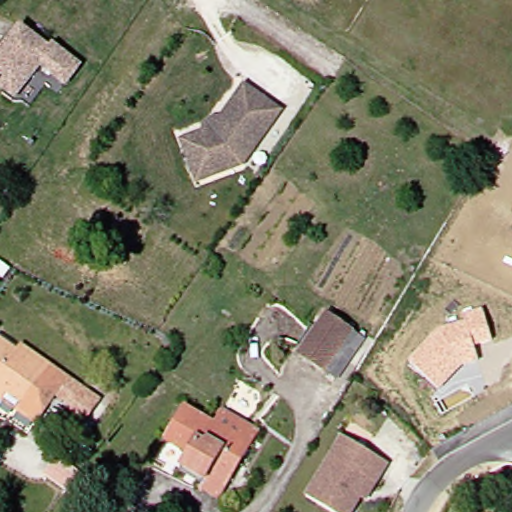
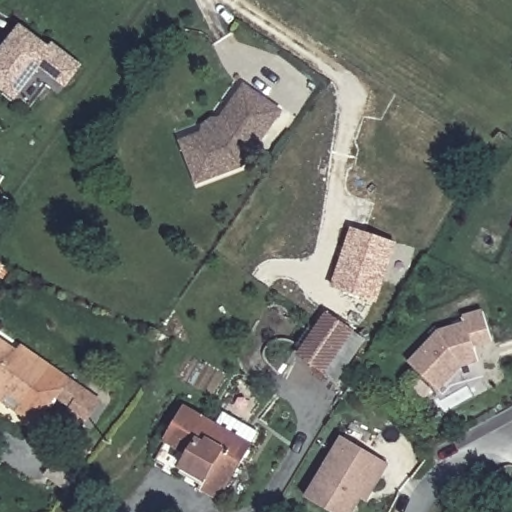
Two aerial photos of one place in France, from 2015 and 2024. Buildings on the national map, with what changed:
unchanged [(22,24),(50,46),(54,41),(80,62),(66,80),(41,60),(16,92),(0,80),(0,52),(22,24)]
unchanged [(213,128),(218,122),(245,82),(281,106),(245,160),(200,177),(184,138),(213,128)]
unchanged [(3,177),(0,183),(0,175),(3,177)]
new [(352,227),(398,243),(378,303),(332,287),(352,227)]
unchanged [(410,361),(439,330),(465,323),(463,315),(482,310),(492,343),(474,349),(478,364),(462,367),(439,390),(410,361)]
unchanged [(341,379),(330,371),(305,355),(331,315),(356,331),(368,339),(341,379)]
unchanged [(41,424),(23,411),(27,405),(0,387),(0,340),(1,337),(69,383),(41,424)]
unchanged [(228,493),(210,482),(214,475),(192,463),(199,450),(176,436),(196,403),(258,440),(228,493)]
unchanged [(387,465),(377,480),(373,478),(353,512),(328,512),(305,498),(342,437),(387,465)]
demolished [(475,512),(488,507),(491,512),(475,512)]

